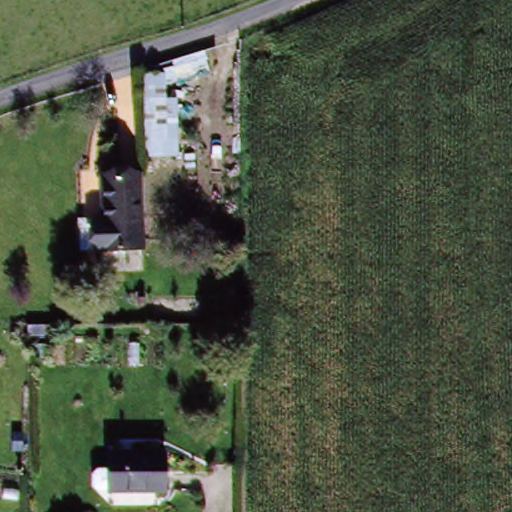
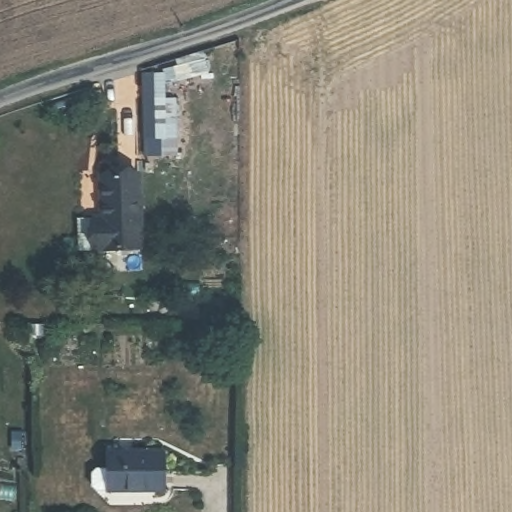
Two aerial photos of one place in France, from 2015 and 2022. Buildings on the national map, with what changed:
unchanged [(145,96),(177,96),(177,140),(146,140),(145,96)]
unchanged [(145,177),(145,251),(82,251),(82,220),(107,220),(106,178),(145,177)]
unchanged [(167,452),(167,492),(112,492),(110,491),(100,492),(96,487),(96,475),(101,470),(112,469),(112,452),(167,452)]

